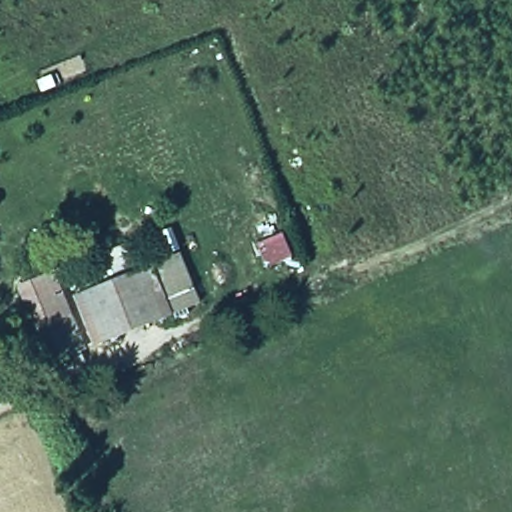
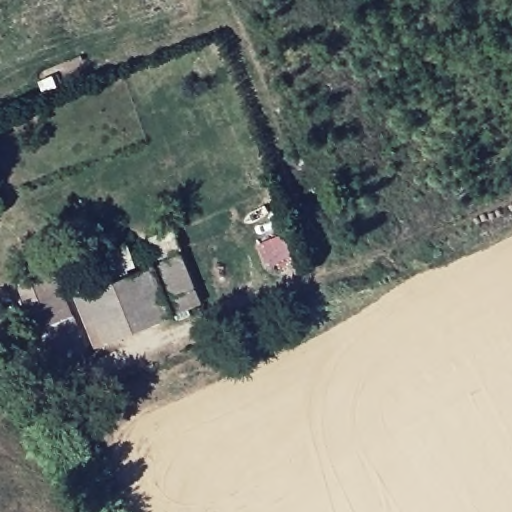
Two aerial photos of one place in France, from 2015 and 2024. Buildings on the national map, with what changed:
unchanged [(180,257),(201,307),(96,350),(75,298),(180,257)]
unchanged [(55,275),(83,352),(50,365),(20,288),(55,275)]

